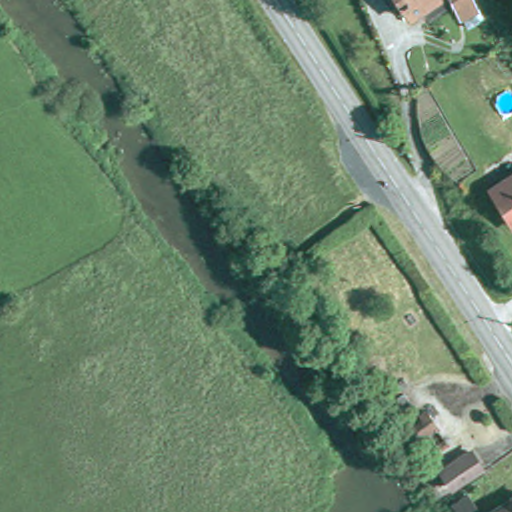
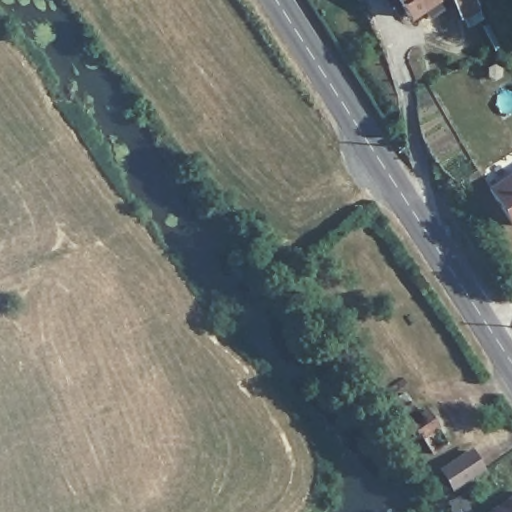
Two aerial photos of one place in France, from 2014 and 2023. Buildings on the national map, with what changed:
unchanged [(407,15),(396,0),(445,0),(430,14),(420,4),(407,15)]
unchanged [(454,0),(472,0),(458,8),(454,0)]
unchanged [(468,159),(454,175),(437,157),(420,127),(417,102),(431,97),(468,159)]
unchanged [(512,162),(512,206),(491,178),(512,162)]
unchanged [(453,440),(435,455),(422,432),(409,411),(419,403),(434,425),(440,421),(453,440)]
unchanged [(445,488),(435,471),(475,447),(484,465),(445,488)]
unchanged [(512,504),(512,512),(501,512),(512,504)]

